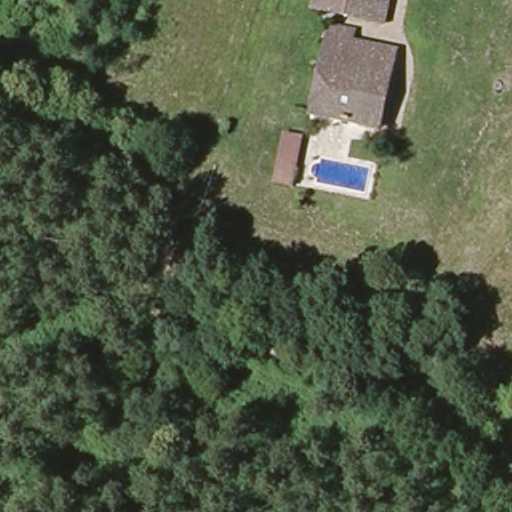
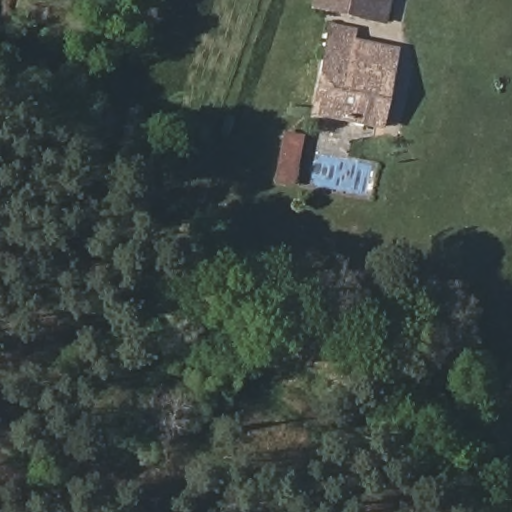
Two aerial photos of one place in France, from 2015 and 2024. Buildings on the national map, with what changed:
unchanged [(321,10),(322,0),(392,0),(388,23),(321,10)]
unchanged [(317,119),(325,27),(348,31),(346,42),(401,53),(398,79),(390,131),(371,128),(317,119)]
unchanged [(307,138),(299,187),(280,186),(289,134),(307,138)]

